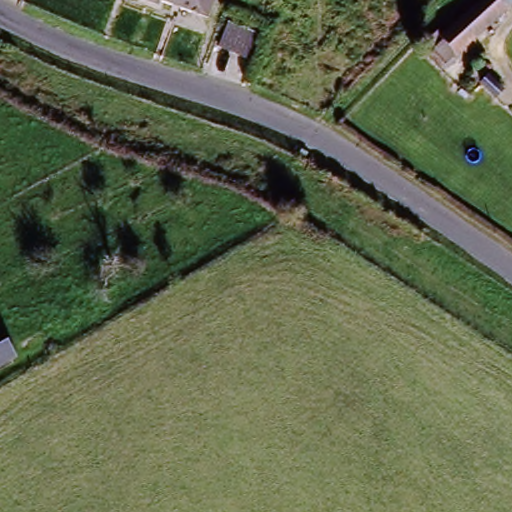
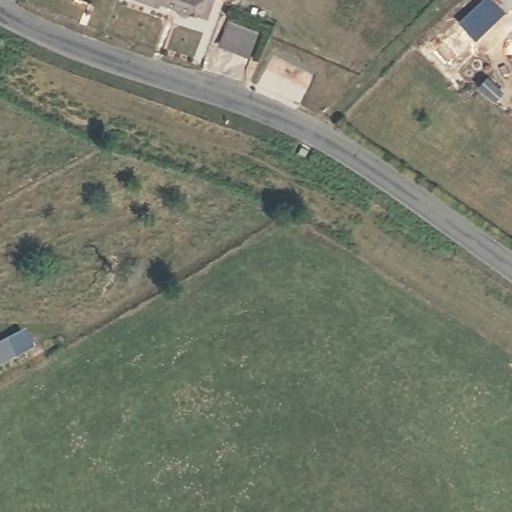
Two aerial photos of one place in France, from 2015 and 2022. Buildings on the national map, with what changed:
unchanged [(158,3),(152,0),(160,0),(158,3)]
unchanged [(209,18),(201,14),(172,0),(215,0),(209,18)]
unchanged [(470,0),(502,0),(497,4),(445,45),(432,32),(470,0)]
unchanged [(247,30),(237,53),(208,40),(219,16),(247,30)]

